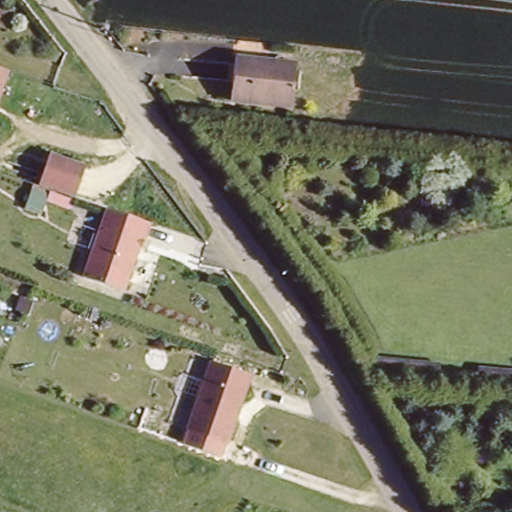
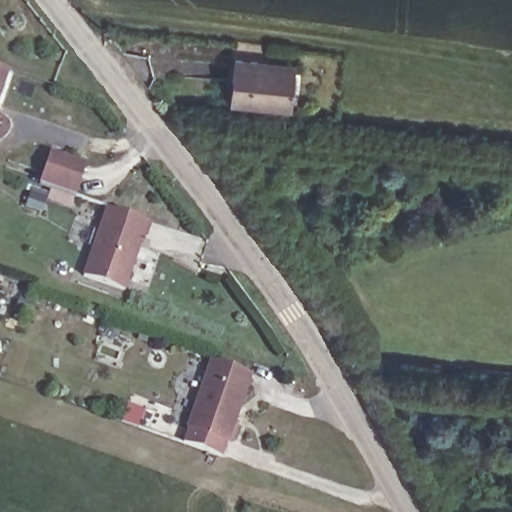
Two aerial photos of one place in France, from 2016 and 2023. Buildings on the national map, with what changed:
unchanged [(261,60),(260,64),(298,68),(294,108),(234,101),(238,58),(261,60)]
unchanged [(0,101),(0,72),(8,75),(0,101)]
unchanged [(38,182),(49,151),(85,164),(75,194),(38,182)]
unchanged [(105,207),(148,223),(126,290),(83,273),(105,207)]
unchanged [(228,442),(185,427),(208,358),(252,373),(228,442)]

